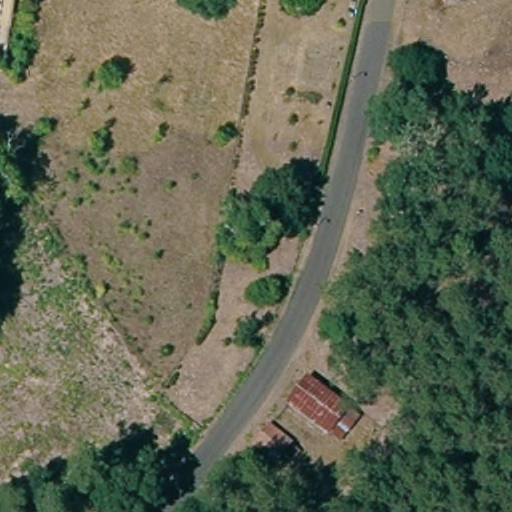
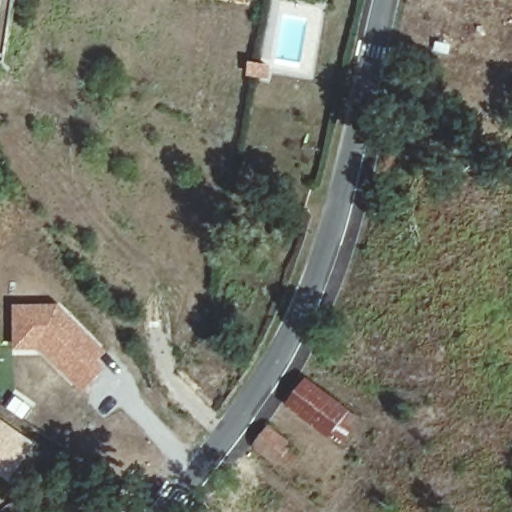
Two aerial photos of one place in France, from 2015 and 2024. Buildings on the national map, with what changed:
new [(61,304),(108,351),(101,360),(108,367),(85,391),(40,348),(13,348),(13,304),(61,304)]
unchanged [(353,414),(335,437),(293,406),(313,380),(353,414)]
new [(10,481),(0,474),(0,418),(37,444),(10,481)]
unchanged [(309,456),(292,476),(260,450),(277,428),(309,456)]

